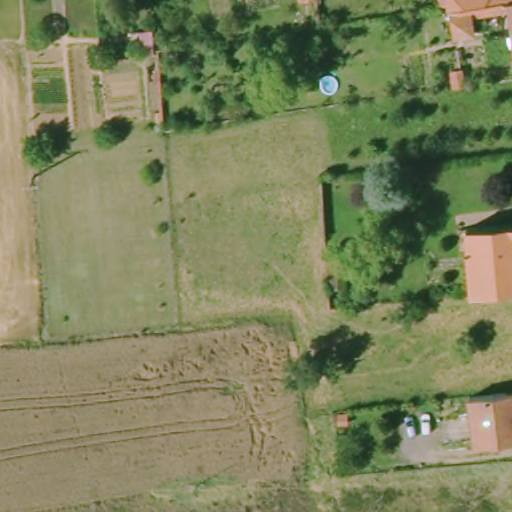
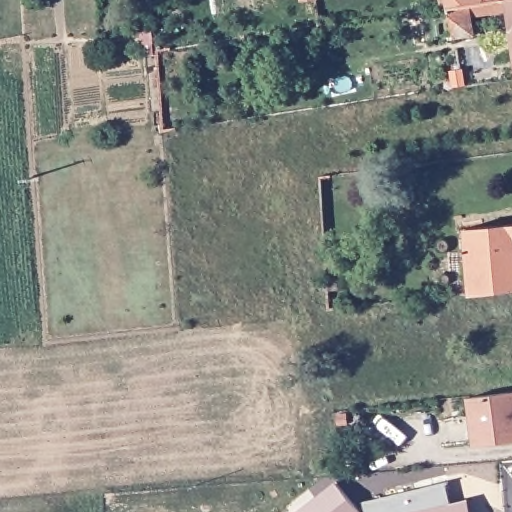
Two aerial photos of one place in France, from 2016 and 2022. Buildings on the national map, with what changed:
unchanged [(472,36),(452,40),(448,10),(447,0),(508,0),(493,2),(494,14),(470,17),(472,36)]
unchanged [(512,0),(512,61),(508,0),(512,0)]
unchanged [(448,73),(457,72),(459,85),(449,87),(448,73)]
unchanged [(458,295),(457,280),(468,280),(467,230),(512,224),(512,288),(458,295)]
unchanged [(512,389),(512,439),(472,443),(466,395),(512,389)]
new [(337,481),(360,512),(298,512),(337,481)]
new [(413,512),(367,512),(365,502),(447,481),(451,503),(413,512)]
new [(471,512),(413,512),(451,503),(468,499),(471,512)]

